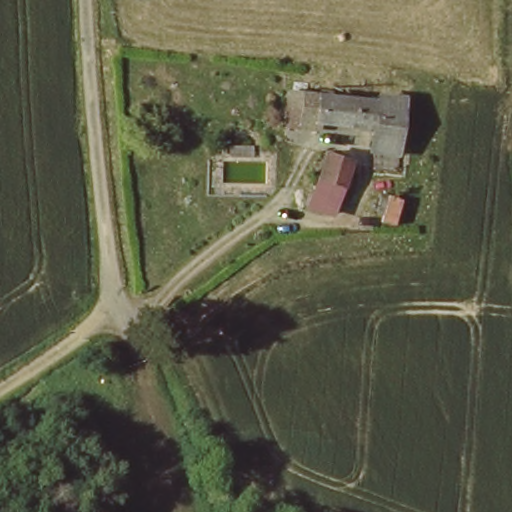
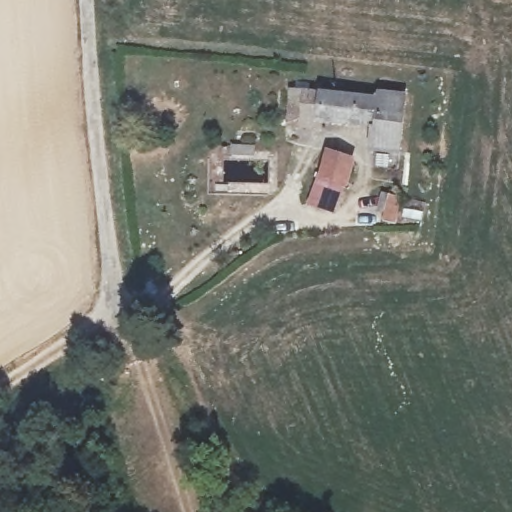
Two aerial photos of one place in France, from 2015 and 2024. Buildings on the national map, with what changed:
unchanged [(318,121),(292,118),(297,87),(322,89),(383,96),(384,91),(408,94),(404,126),(378,123),(319,116),(318,121)]
unchanged [(399,165),(372,163),(378,123),(404,126),(399,165)]
unchanged [(337,213),(308,202),(329,150),(358,161),(337,213)]

